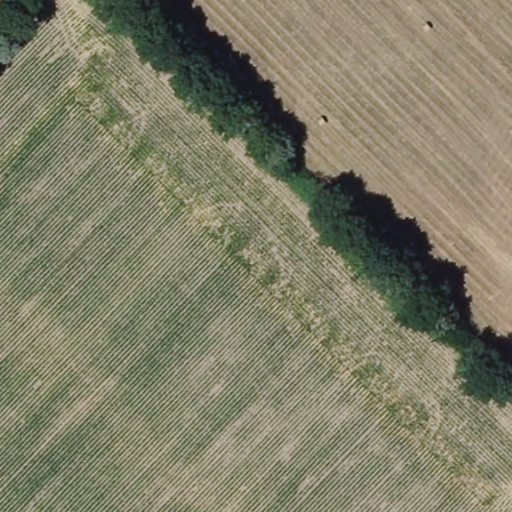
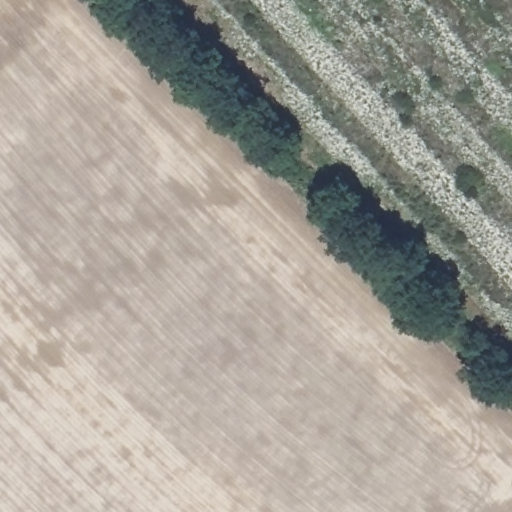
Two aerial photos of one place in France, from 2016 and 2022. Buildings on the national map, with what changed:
[]

